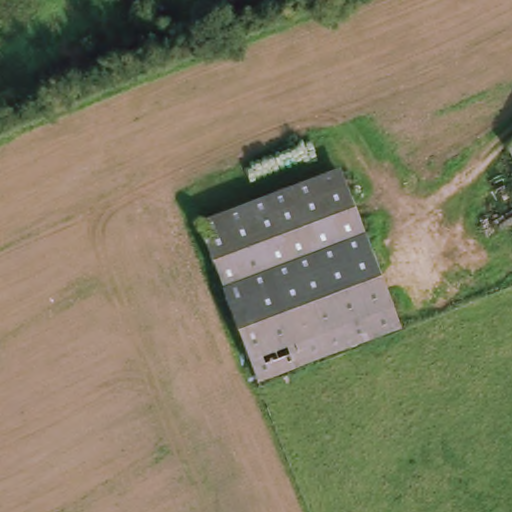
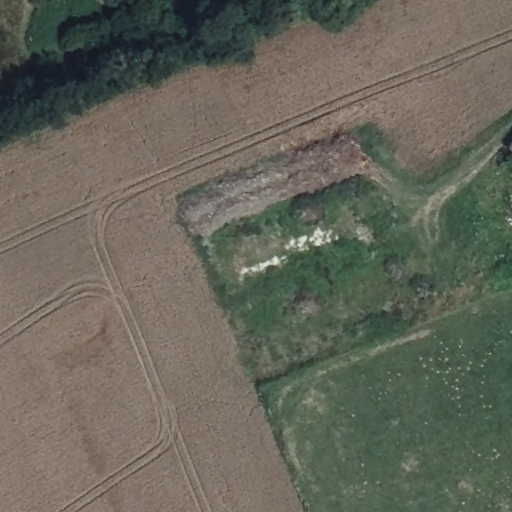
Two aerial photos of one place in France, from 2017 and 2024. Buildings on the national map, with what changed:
demolished [(512,149),(512,165),(505,154),(512,149)]
demolished [(341,171),(402,339),(255,387),(198,225),(341,171)]

